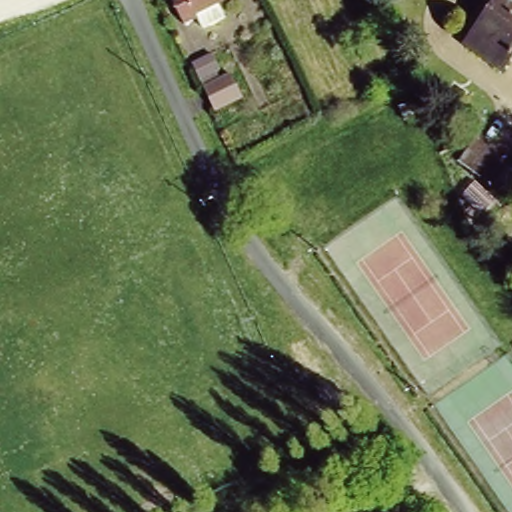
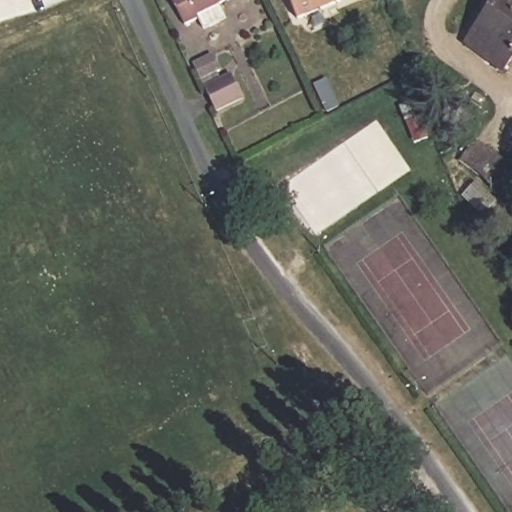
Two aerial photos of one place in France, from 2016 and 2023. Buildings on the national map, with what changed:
unchanged [(224,8),(230,22),(207,30),(203,22),(187,28),(174,0),(245,0),(224,8)]
new [(289,0),(347,0),(337,5),(298,21),(289,0)]
unchanged [(467,41),(504,0),(512,0),(512,63),(505,70),(467,41)]
unchanged [(217,55),(192,65),(185,51),(210,41),(217,55)]
unchanged [(247,101),(217,113),(207,91),(235,79),(247,101)]
unchanged [(490,182),(457,155),(473,135),(508,162),(490,182)]

